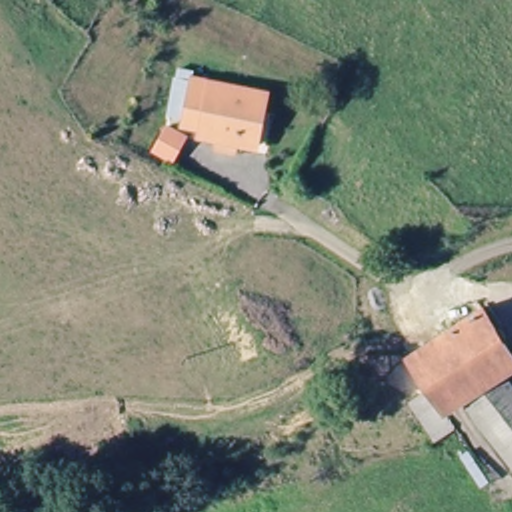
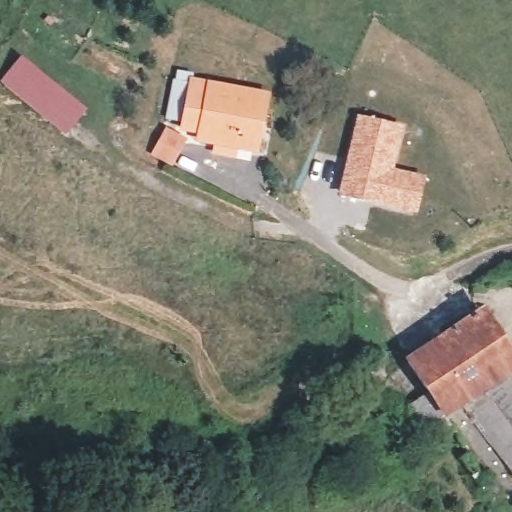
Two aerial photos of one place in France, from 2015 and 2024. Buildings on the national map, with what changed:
new [(65,136),(0,82),(20,57),(85,110),(65,136)]
unchanged [(235,137),(220,136),(220,145),(197,141),(197,130),(181,126),(187,82),(263,95),(257,151),(234,147),(235,137)]
new [(355,114),(404,125),(394,168),(424,175),(416,215),(337,194),(355,114)]
unchanged [(458,405),(441,418),(426,396),(405,365),(475,312),(512,365),(512,367),(501,375),(458,405)]
unchanged [(512,389),(512,471),(458,405),(501,375),(512,389)]
demolished [(441,418),(455,439),(433,456),(402,413),(426,396),(441,418)]

